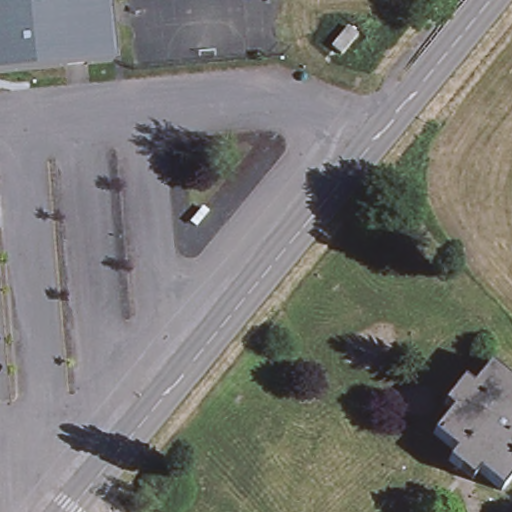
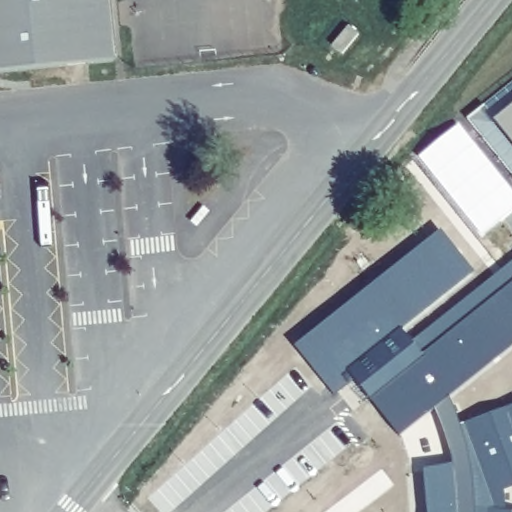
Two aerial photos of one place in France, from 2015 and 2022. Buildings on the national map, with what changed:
unchanged [(0,81),(0,0),(108,0),(115,71),(0,81)]
unchanged [(360,52),(343,72),(333,64),(350,45),(360,52)]
new [(512,144),(494,121),(512,107),(512,144)]
new [(421,465),(448,461),(436,412),(396,437),(355,382),(334,396),(295,347),(442,231),(471,271),(401,326),(411,340),(512,257),(512,348),(455,397),(461,422),(512,404),(512,484),(505,487),(503,507),(512,508),(512,512),(426,512),(421,465)]
demolished [(470,375),(480,385),(498,366),(512,378),(512,482),(503,492),(481,472),(473,480),(450,458),(458,450),(437,431),(456,411),(445,400),(470,375)]

